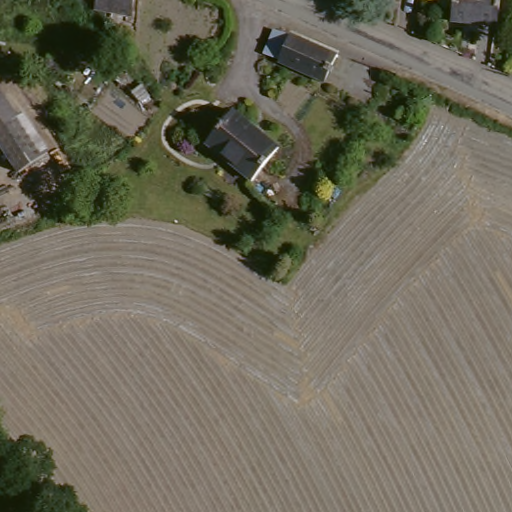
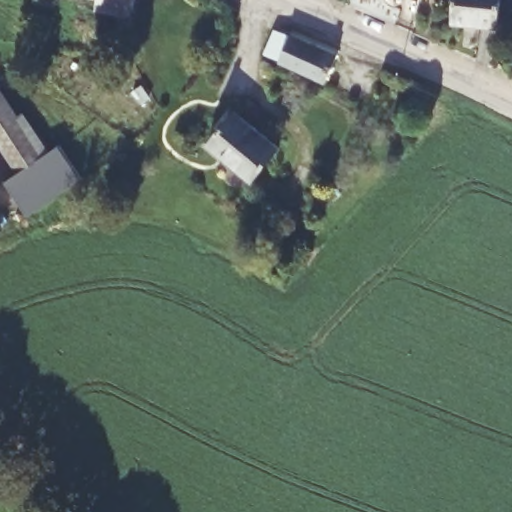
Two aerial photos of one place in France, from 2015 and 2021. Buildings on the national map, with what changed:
unchanged [(135,11),(103,6),(100,0),(137,0),(135,10),(135,11)]
unchanged [(448,26),(452,0),(496,0),(493,31),(448,26)]
unchanged [(280,62),(263,56),(275,25),(290,32),(340,54),(325,80),(280,62)]
unchanged [(0,142),(0,82),(1,81),(49,153),(21,173),(0,142)]
unchanged [(283,148),(260,183),(212,151),(235,117),(283,148)]
new [(21,173),(49,153),(61,145),(84,177),(30,216),(7,183),(21,173)]

